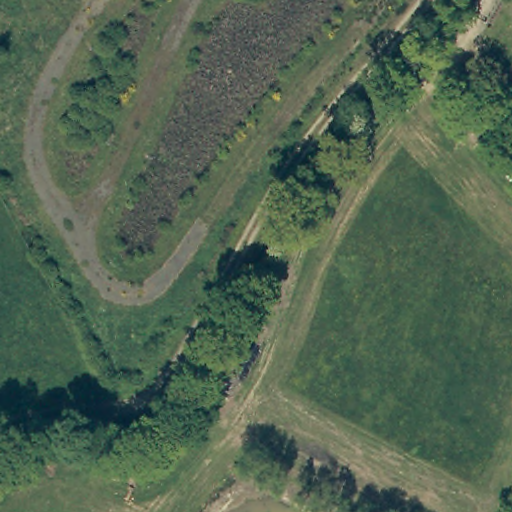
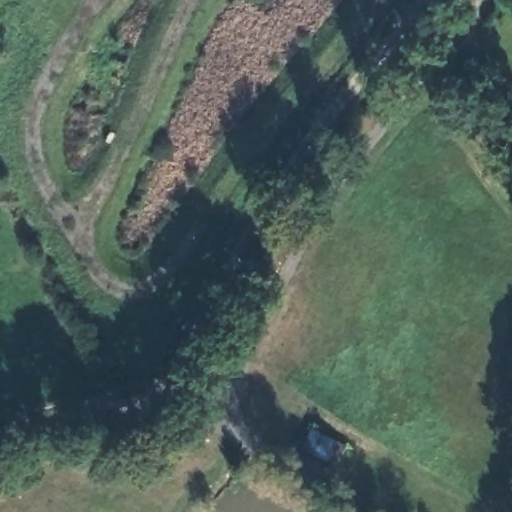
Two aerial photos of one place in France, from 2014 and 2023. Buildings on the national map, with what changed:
[]

